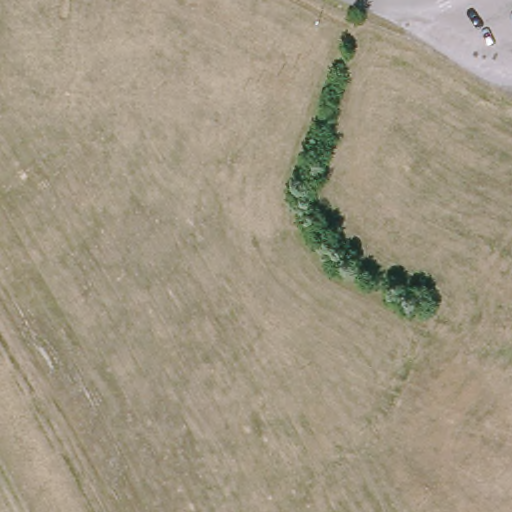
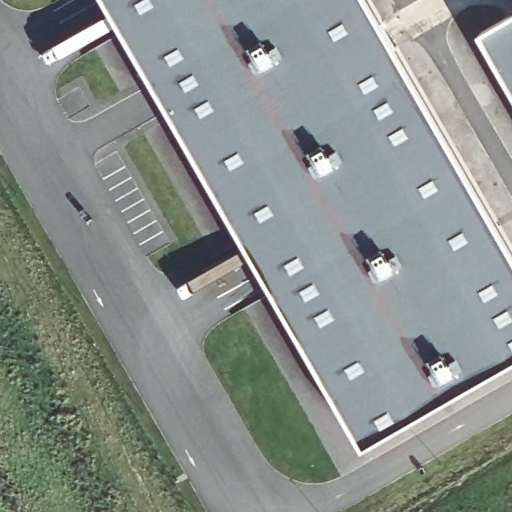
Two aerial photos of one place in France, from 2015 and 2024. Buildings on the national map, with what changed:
new [(512,364),(367,448),(107,0),(367,0),(512,242),(512,364)]
new [(512,72),(490,35),(512,23),(512,72)]

